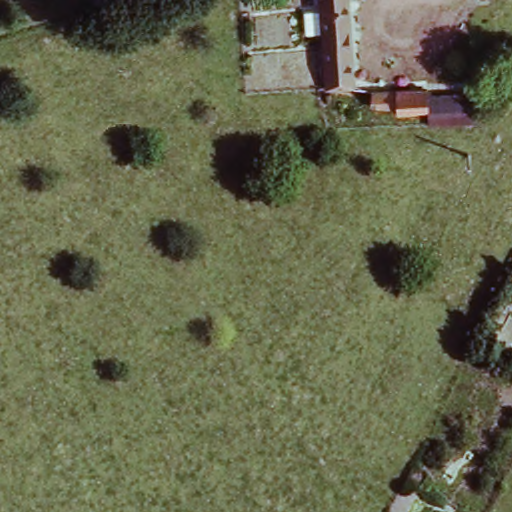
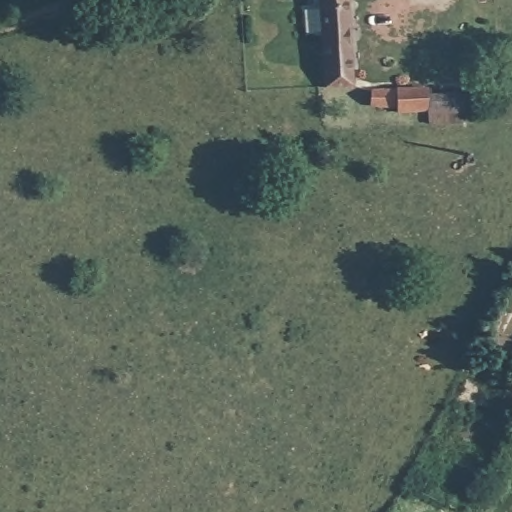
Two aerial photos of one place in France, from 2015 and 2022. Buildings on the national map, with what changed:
unchanged [(320,5),(320,0),(350,0),(353,82),(332,83),(323,83),(321,31),(301,30),(304,6),(320,5)]
unchanged [(382,91),(484,86),(485,99),(486,108),(383,114),(382,91)]

